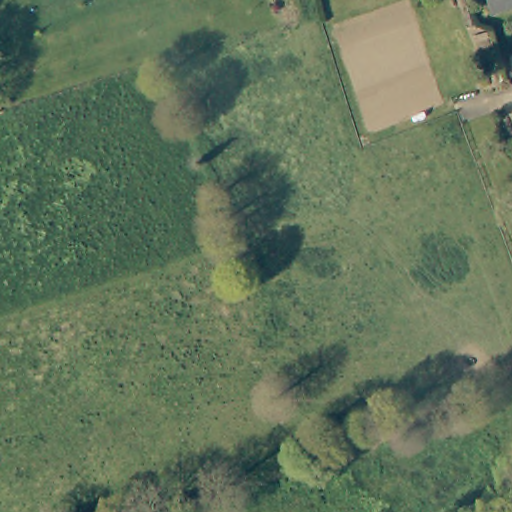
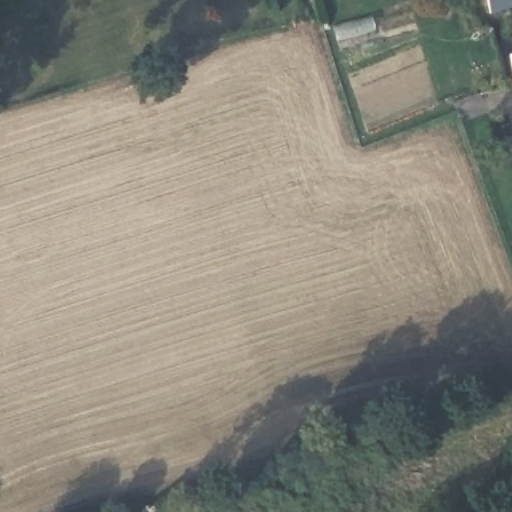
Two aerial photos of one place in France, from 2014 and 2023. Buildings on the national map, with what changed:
unchanged [(512,0),(512,8),(502,11),(490,14),(486,0),(512,0)]

